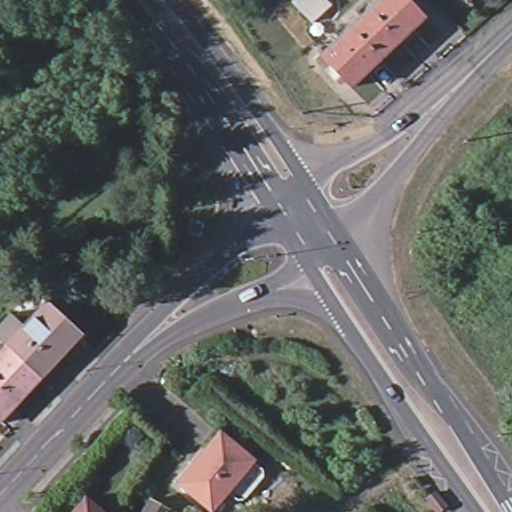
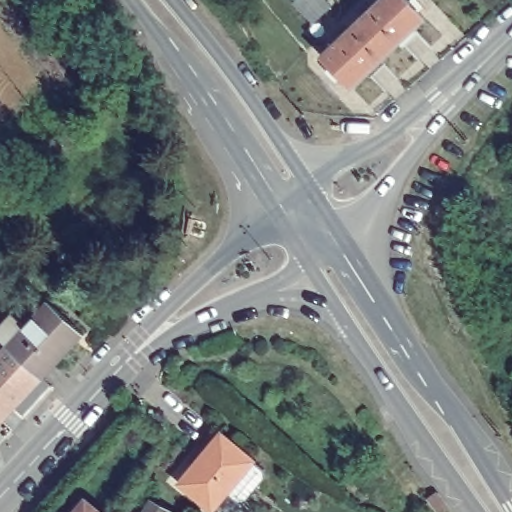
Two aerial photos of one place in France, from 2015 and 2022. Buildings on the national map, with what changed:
unchanged [(332,5),(312,24),(293,4),(297,0),(326,0),(332,5)]
unchanged [(379,0),(408,0),(425,18),(382,59),(351,26),(379,0)]
unchanged [(320,55),(351,26),(382,59),(351,88),(320,55)]
unchanged [(147,90),(155,99),(145,107),(137,98),(147,90)]
unchanged [(84,340),(82,341),(80,339),(41,381),(43,383),(42,385),(40,382),(6,351),(0,345),(0,331),(12,318),(26,332),(48,309),(45,307),(47,305),(84,340)]
unchanged [(0,358),(6,351),(40,382),(0,426),(0,358)]
unchanged [(212,509),(180,483),(221,435),(252,460),(212,509)]
unchanged [(440,511),(430,498),(436,494),(445,507),(440,511)]
unchanged [(144,512),(151,500),(172,512),(144,512)]
unchanged [(95,512),(79,512),(85,504),(95,512)]

